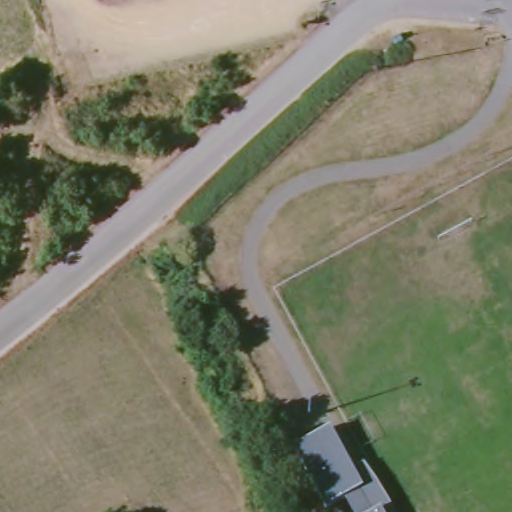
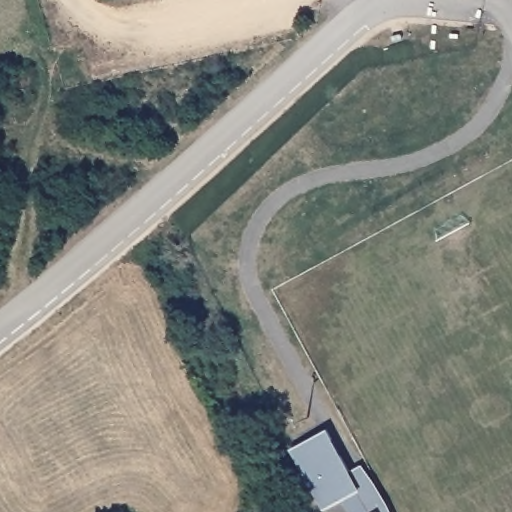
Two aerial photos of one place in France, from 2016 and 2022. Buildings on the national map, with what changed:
unchanged [(343,498),(324,508),(291,447),(328,426),(350,467),(361,462),(380,488),(391,509),(392,512),(351,512),(343,498)]

